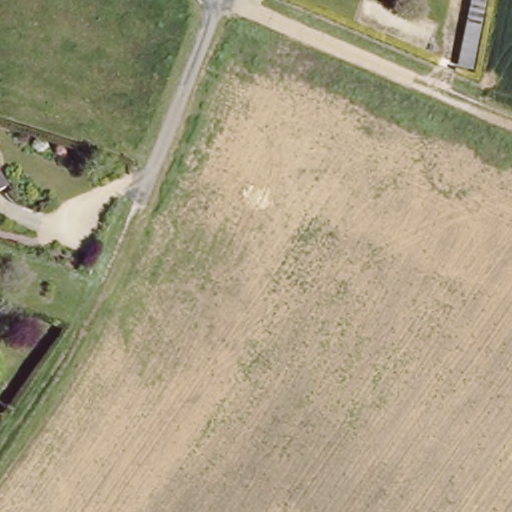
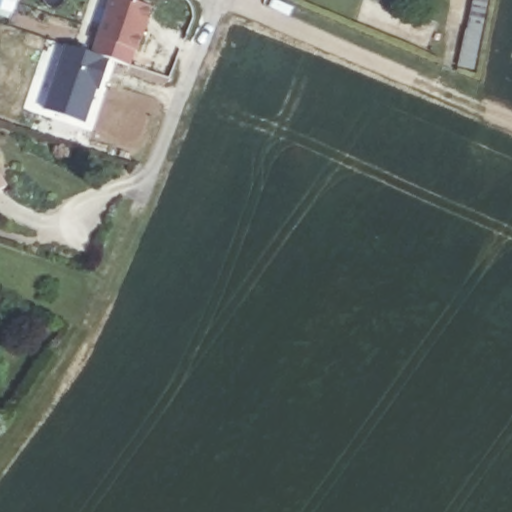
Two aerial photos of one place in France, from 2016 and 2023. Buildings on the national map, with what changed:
new [(65,45),(96,56),(101,40),(98,39),(112,0),(127,0),(152,8),(137,52),(135,51),(130,66),(111,60),(101,92),(97,90),(87,125),(44,110),(65,45)]
unchanged [(469,12),(483,15),(472,69),(460,66),(469,12)]
unchanged [(0,190),(0,179),(5,187),(0,190)]

